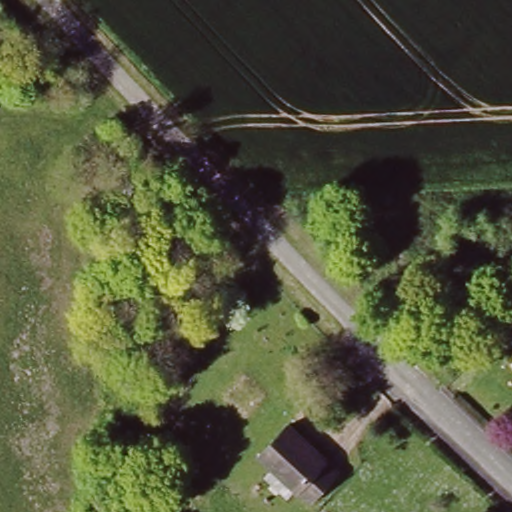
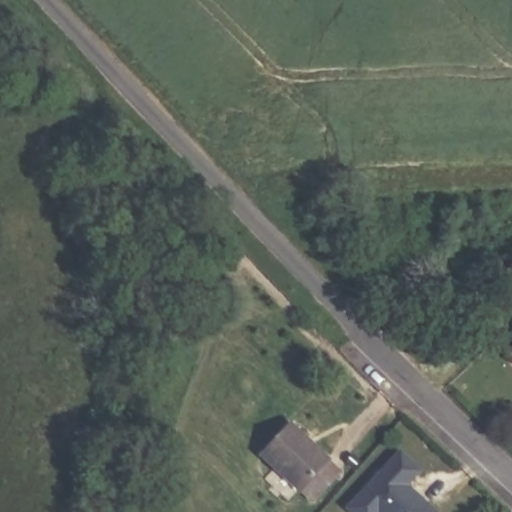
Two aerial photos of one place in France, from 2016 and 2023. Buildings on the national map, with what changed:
unchanged [(299,496),(261,460),(291,430),(329,465),(327,467),(338,477),(311,506),(300,495),(299,496)]
new [(350,512),(346,508),(399,451),(419,470),(402,488),(428,512),(350,512)]
new [(405,484),(435,512),(428,512),(402,488),(405,484)]

